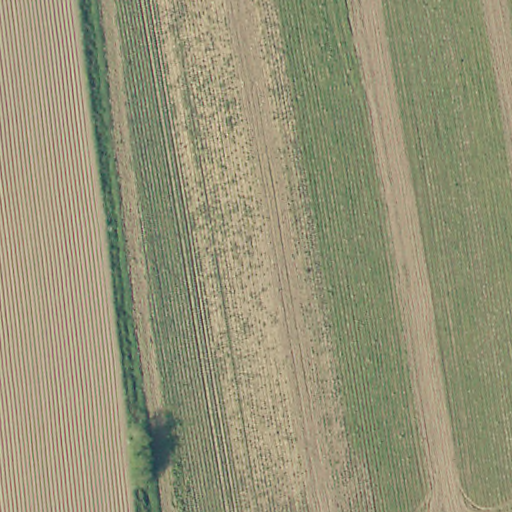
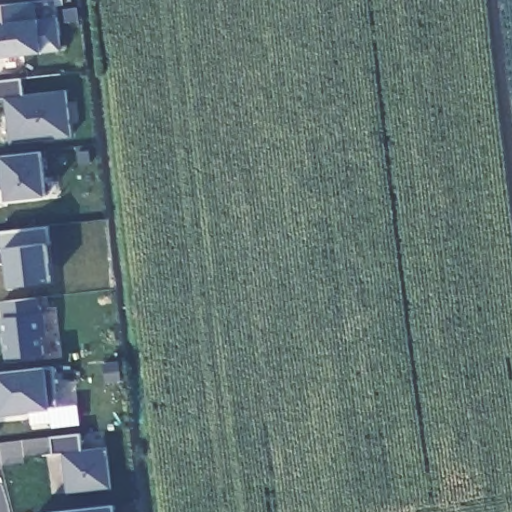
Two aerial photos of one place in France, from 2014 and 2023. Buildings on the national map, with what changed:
new [(38,18),(57,15),(61,50),(41,53),(0,57),(0,5),(33,1),(38,18)]
new [(8,141),(3,98),(0,98),(0,80),(20,78),(22,94),(65,90),(69,135),(8,141)]
new [(45,196),(4,201),(2,180),(0,180),(0,155),(40,152),(45,196)]
new [(49,243),(46,244),(49,281),(8,286),(4,249),(0,249),(0,231),(47,226),(49,243)]
new [(36,297),(39,313),(45,312),(47,335),(41,336),(43,354),(5,357),(1,318),(0,307),(0,302),(36,297)]
new [(46,368),(51,367),(55,405),(51,405),(52,409),(0,416),(0,373),(46,368)]
new [(81,450),(105,447),(109,488),(67,493),(62,453),(52,454),(50,437),(79,434),(81,450)]
new [(114,512),(56,512),(113,506),(114,512)]

